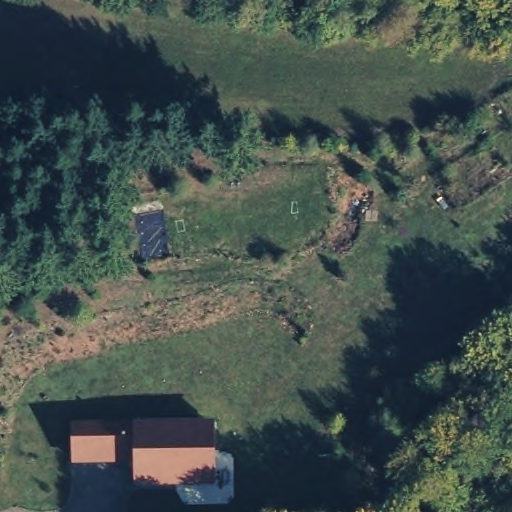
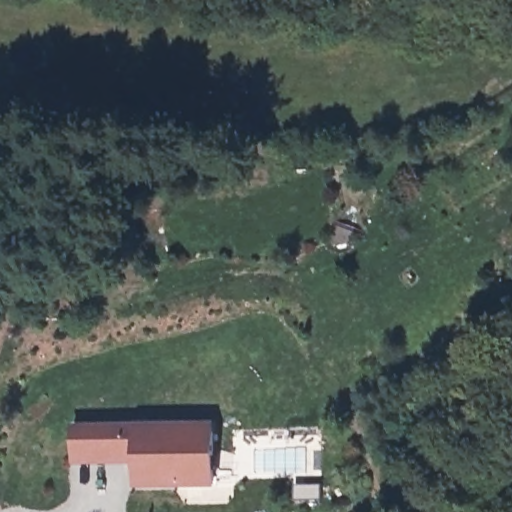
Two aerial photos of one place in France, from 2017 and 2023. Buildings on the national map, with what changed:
unchanged [(214,421),(213,489),(135,489),(134,466),(73,467),(71,422),(214,421)]

